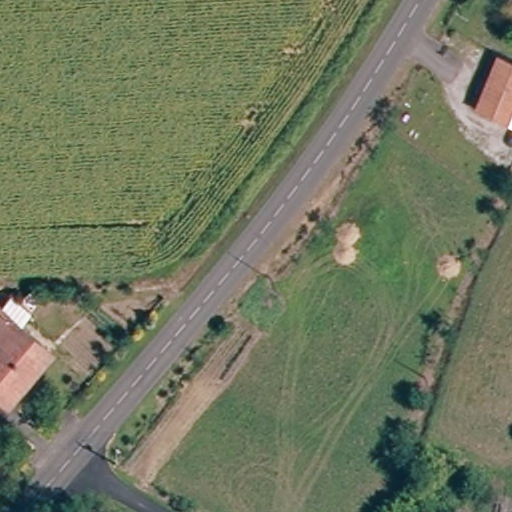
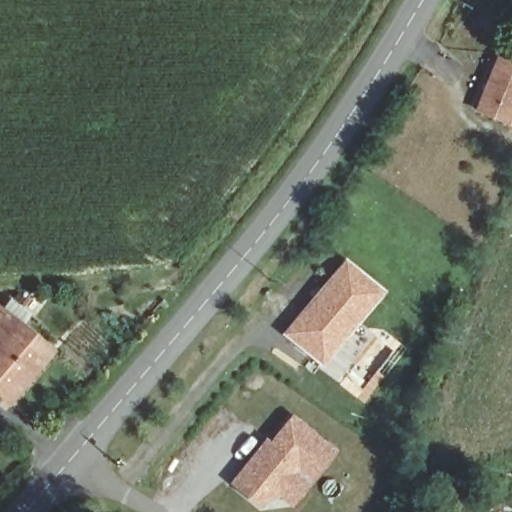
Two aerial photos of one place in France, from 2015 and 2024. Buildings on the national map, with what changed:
unchanged [(476,113),(495,60),(512,66),(512,104),(505,122),(476,113)]
unchanged [(512,104),(512,124),(505,122),(512,104)]
new [(384,293),(322,367),(282,335),(345,261),(384,293)]
unchanged [(15,308),(32,320),(22,331),(48,351),(5,404),(0,400),(0,314),(6,318),(15,308)]
new [(332,452),(320,464),(315,462),(305,474),(298,469),(278,492),(271,488),(260,502),(244,489),(249,481),(240,475),(263,446),(268,449),(292,421),(332,452)]

